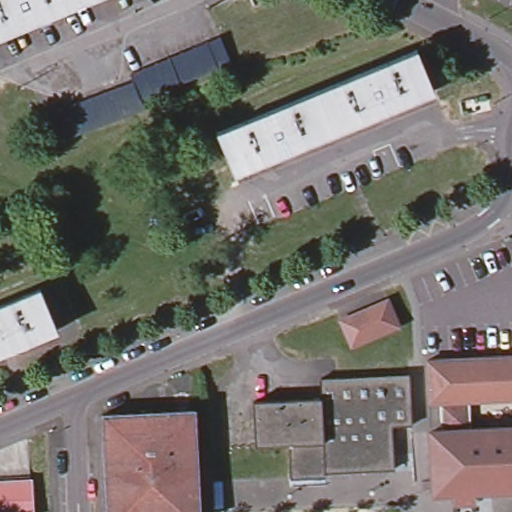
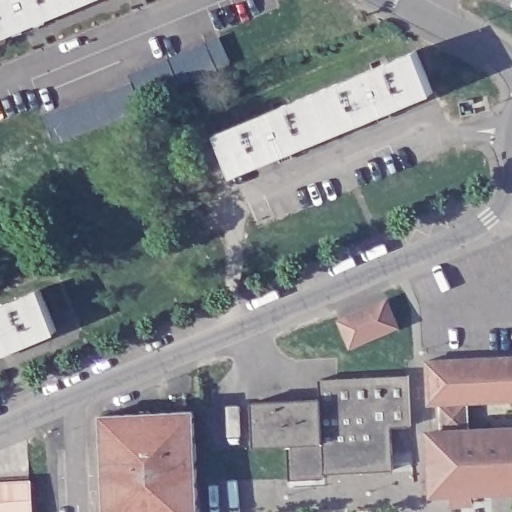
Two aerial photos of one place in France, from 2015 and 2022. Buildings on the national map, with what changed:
unchanged [(0,37),(0,0),(87,0),(0,37)]
unchanged [(58,146),(46,117),(130,81),(126,72),(153,60),(216,32),(228,57),(164,85),(137,96),(143,110),(58,146)]
unchanged [(436,90),(239,172),(221,134),(418,51),(436,90)]
unchanged [(59,332),(0,358),(0,310),(42,293),(59,332)]
unchanged [(337,318),(391,296),(403,323),(351,348),(337,318)]
unchanged [(512,354),(512,427),(440,431),(441,403),(428,405),(427,358),(512,354)]
unchanged [(320,397),(320,376),(410,372),(411,424),(391,425),(393,467),(324,470),(325,476),(290,477),(288,442),(253,444),(251,400),(320,397)]
unchanged [(192,408),(197,512),(104,512),(100,412),(192,408)]
unchanged [(440,431),(512,427),(512,490),(433,493),(431,431),(440,431)]
unchanged [(32,512),(0,512),(0,479),(30,477),(32,512)]

